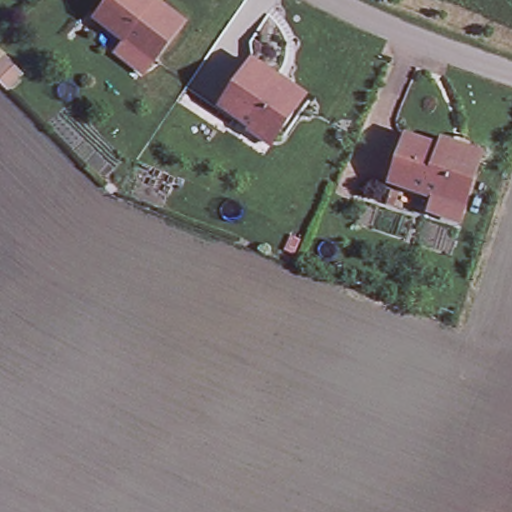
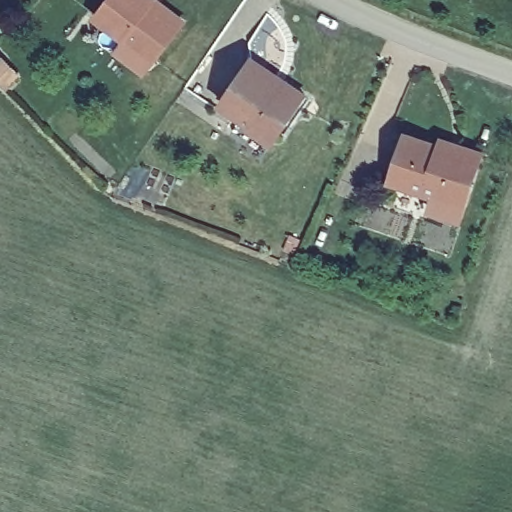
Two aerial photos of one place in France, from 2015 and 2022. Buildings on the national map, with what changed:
unchanged [(96,17),(109,0),(155,0),(180,18),(175,25),(151,59),(142,71),(116,51),(125,39),(96,17)]
unchanged [(250,70),(258,55),(280,70),(273,79),(303,99),(277,139),(274,142),(245,124),(223,110),(250,70)]
unchanged [(17,76),(5,87),(0,82),(0,64),(2,61),(17,76)]
unchanged [(430,214),(435,200),(387,184),(405,137),(440,149),(442,143),(482,157),(478,169),(463,210),(458,224),(430,214)]

